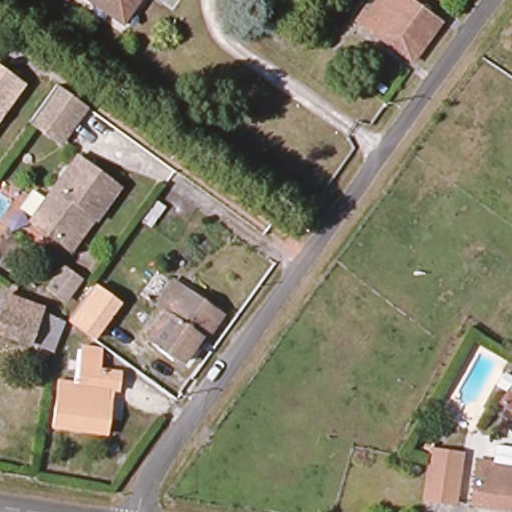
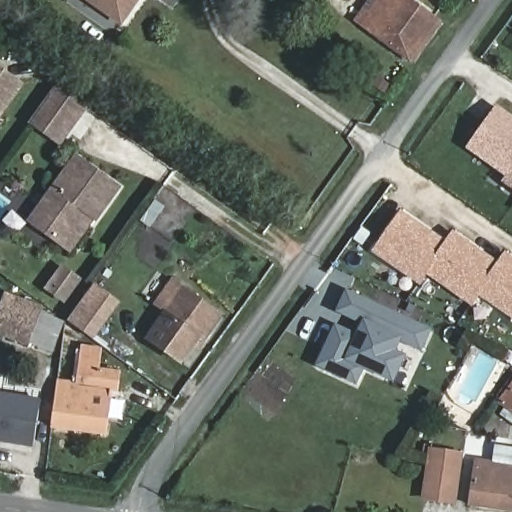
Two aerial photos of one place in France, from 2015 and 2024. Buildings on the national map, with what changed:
unchanged [(119,20),(91,0),(133,0),(119,20)]
unchanged [(371,37),(354,25),(361,15),(364,16),(374,2),(372,0),(403,0),(436,25),(408,64),(371,37)]
unchanged [(0,77),(14,86),(0,105),(0,77)]
unchanged [(47,85),(76,106),(49,142),(20,121),(47,85)]
unchanged [(0,116),(0,105),(14,86),(19,90),(0,116)]
new [(499,107),(512,117),(512,184),(507,180),(511,174),(472,145),(499,107)]
unchanged [(114,194),(92,224),(84,218),(60,251),(26,227),(73,163),(114,194)]
new [(512,256),(512,318),(481,295),(473,307),(427,275),(419,285),(372,252),(401,210),(444,241),(453,230),(497,263),(505,251),(512,256)]
unchanged [(154,296),(144,288),(153,276),(163,284),(154,296)]
unchanged [(81,286),(61,313),(48,304),(69,277),(81,286)]
unchanged [(183,366),(146,340),(165,315),(151,304),(172,280),(219,315),(183,366)]
unchanged [(16,288),(14,295),(6,292),(9,285),(16,288)]
new [(337,325),(359,336),(366,322),(339,310),(348,290),(431,329),(422,348),(399,338),(394,351),(404,355),(394,378),(364,365),(357,382),(319,365),(337,325)]
unchanged [(29,345),(0,334),(0,313),(7,295),(43,309),(29,345)]
unchanged [(90,335),(75,326),(90,299),(105,308),(90,335)]
unchanged [(95,371),(114,373),(113,390),(106,390),(101,435),(48,428),(54,381),(72,383),(77,347),(98,350),(95,371)]
unchanged [(494,403),(512,378),(512,417),(494,403)]
new [(33,448),(0,443),(0,397),(40,403),(33,448)]
unchanged [(487,512),(474,510),(479,465),(496,467),(498,450),(512,452),(512,512),(487,512)]
unchanged [(457,508),(427,503),(434,455),(464,460),(457,508)]

